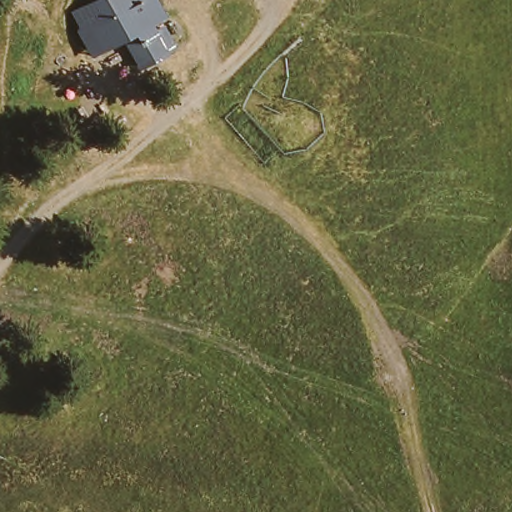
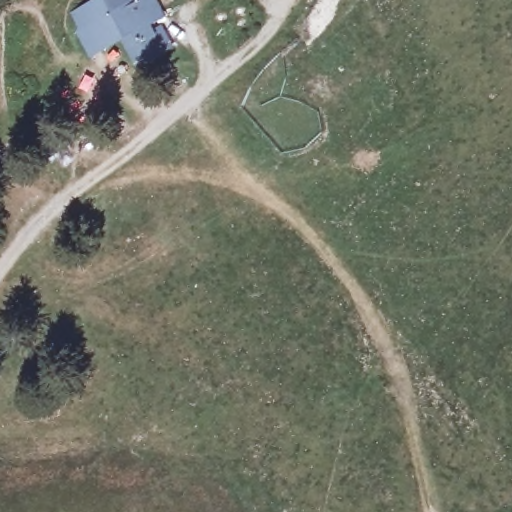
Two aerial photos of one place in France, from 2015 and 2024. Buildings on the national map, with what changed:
unchanged [(73,33),(76,32),(67,14),(85,5),(94,0),(150,0),(159,17),(146,25),(150,34),(159,29),(168,46),(160,52),(160,54),(134,68),(120,39),(97,51),(87,56),(81,46),(73,33)]

